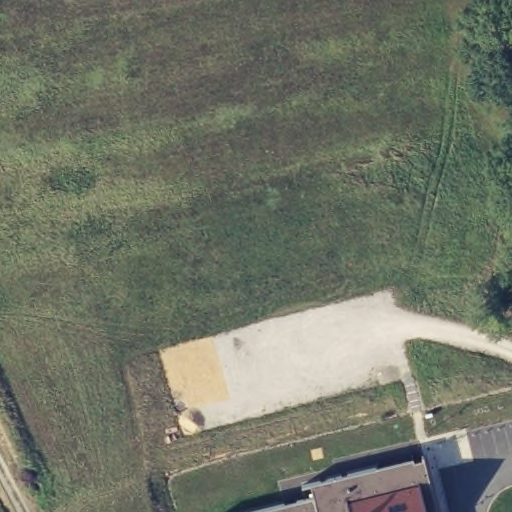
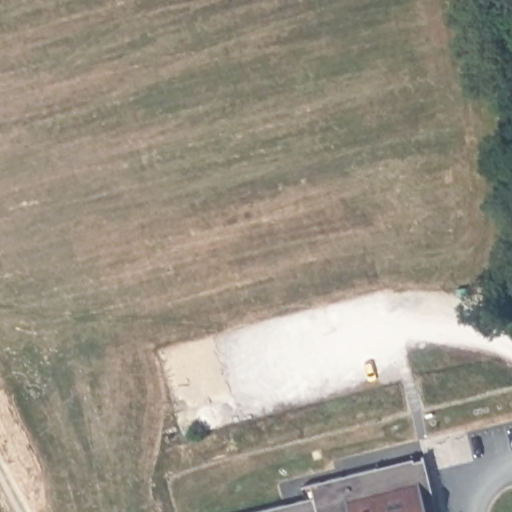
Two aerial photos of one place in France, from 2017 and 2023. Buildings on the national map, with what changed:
unchanged [(254,512),(313,497),(309,484),(422,456),(435,512),(254,512)]

